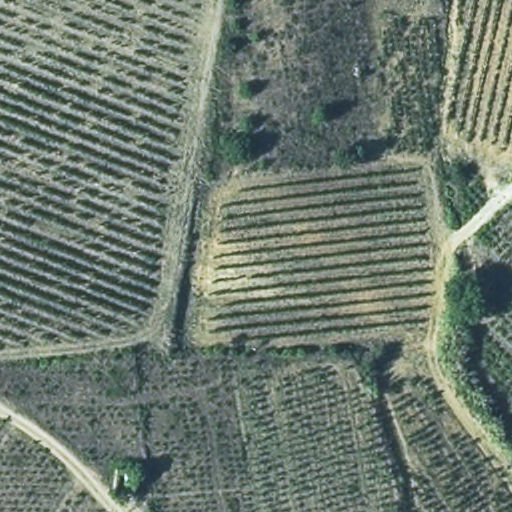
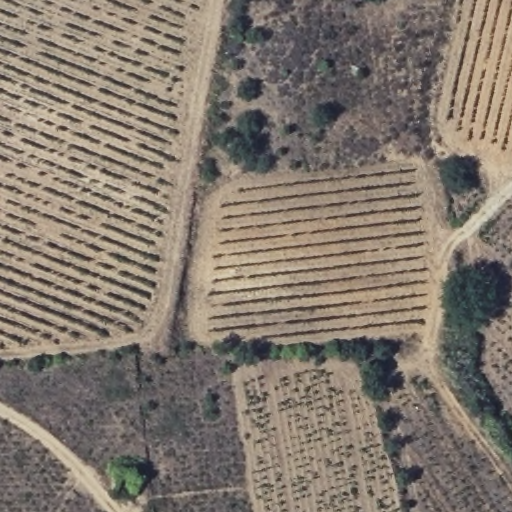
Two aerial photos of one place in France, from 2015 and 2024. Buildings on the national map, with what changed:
unchanged [(136,464),(135,487),(113,485),(114,463),(136,464)]

